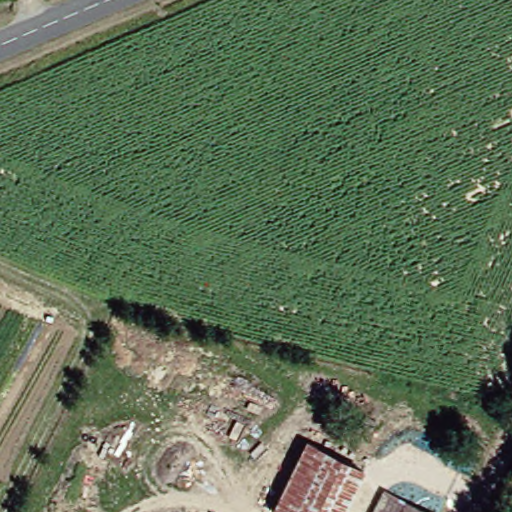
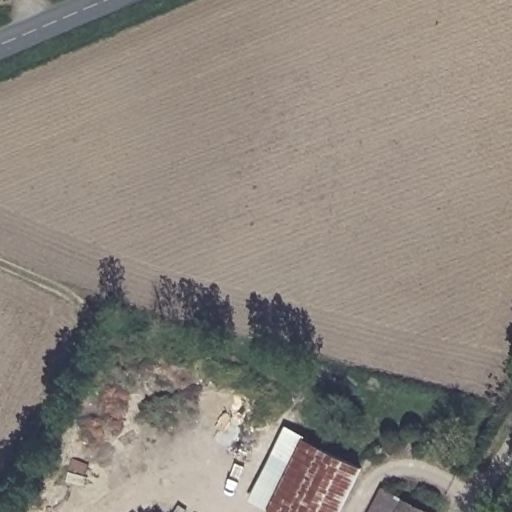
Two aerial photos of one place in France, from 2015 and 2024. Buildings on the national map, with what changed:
unchanged [(352,463),(328,512),(276,512),(263,505),(296,436),(352,463)]
unchanged [(396,501),(390,512),(364,512),(375,491),(396,501)]
unchanged [(390,512),(396,501),(417,512),(390,512)]

